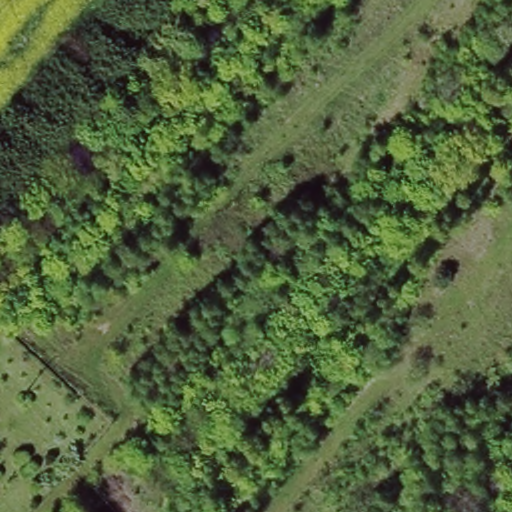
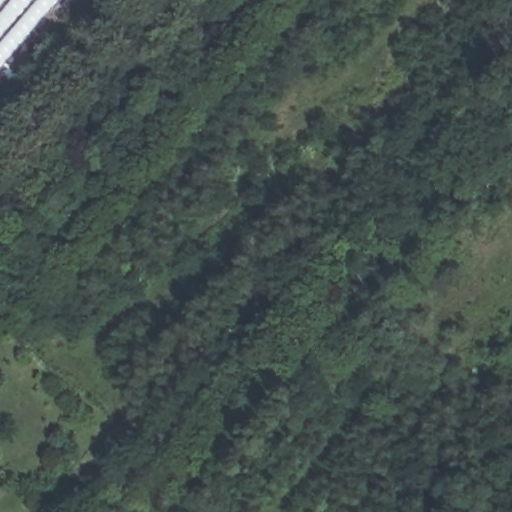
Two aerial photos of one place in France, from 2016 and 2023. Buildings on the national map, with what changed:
new [(59,0),(0,69),(0,0),(59,0)]

